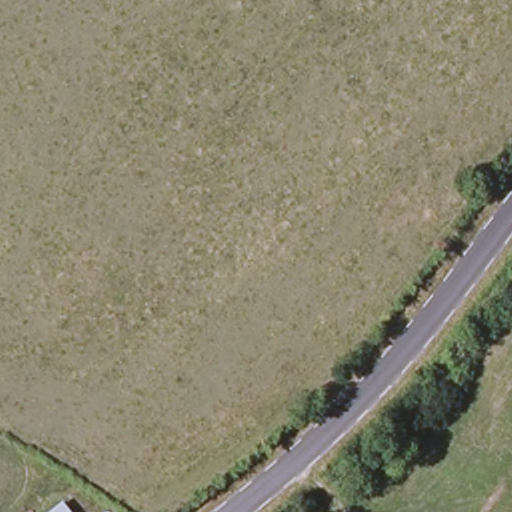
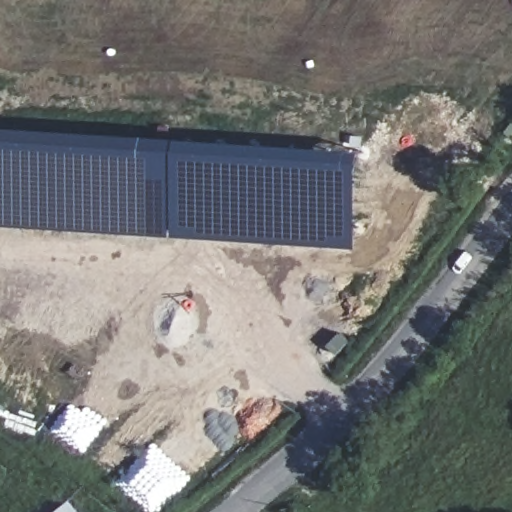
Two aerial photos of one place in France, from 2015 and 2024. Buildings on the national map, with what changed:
new [(357,248),(0,226),(0,129),(362,154),(357,248)]
unchanged [(69,512),(65,512),(67,510),(69,512)]

